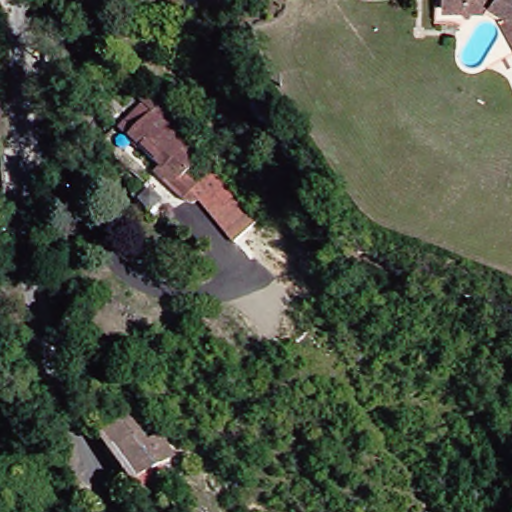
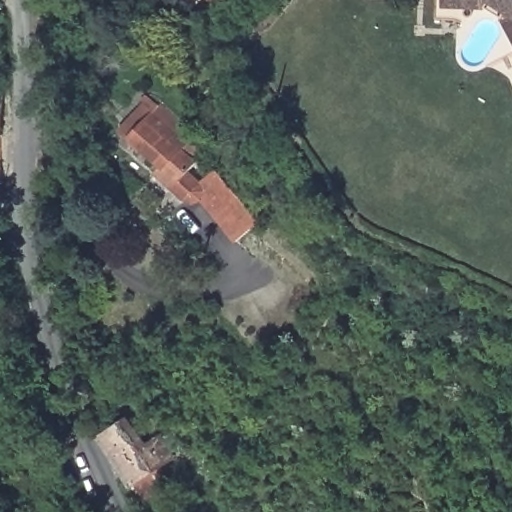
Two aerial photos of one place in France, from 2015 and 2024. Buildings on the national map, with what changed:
unchanged [(512,33),(500,9),(488,2),(486,6),(446,4),(446,0),(512,0),(512,33)]
unchanged [(193,151),(253,221),(230,241),(195,196),(180,209),(149,172),(157,166),(117,130),(145,98),(198,145),(193,151)]
unchanged [(147,444),(160,435),(174,453),(134,482),(102,436),(128,419),(147,444)]

